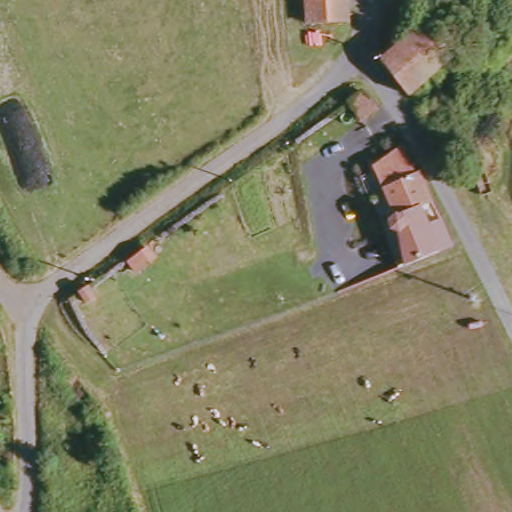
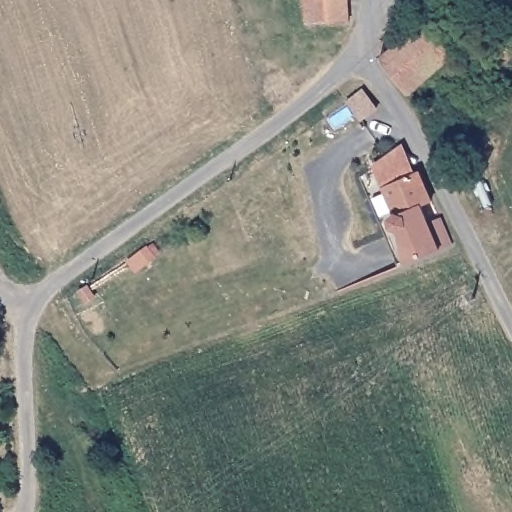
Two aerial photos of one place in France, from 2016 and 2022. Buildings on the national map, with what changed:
unchanged [(312,24),(310,0),(352,0),(353,19),(312,24)]
unchanged [(453,41),(405,83),(403,79),(386,58),(435,15),(453,41)]
unchanged [(414,109),(432,91),(444,104),(425,126),(414,109)]
unchanged [(364,112),(347,124),(336,107),(352,95),(364,112)]
unchanged [(442,218),(455,245),(410,267),(392,222),(397,218),(382,191),(372,172),(399,150),(413,176),(417,174),(432,202),(442,218)]

